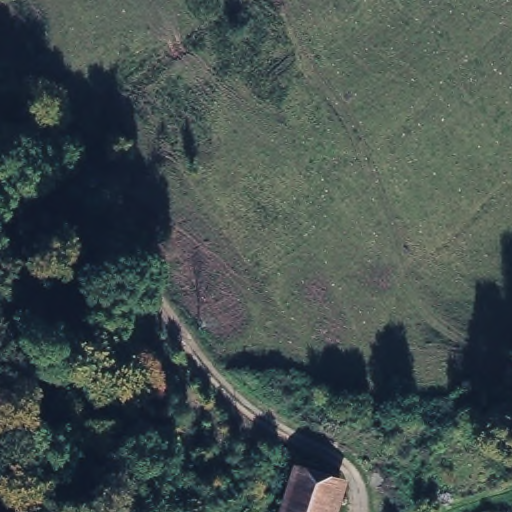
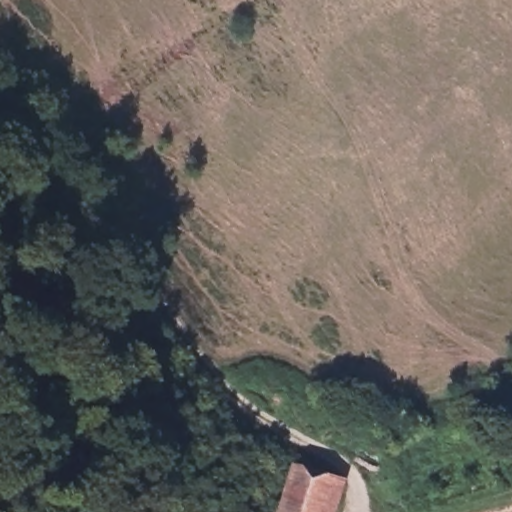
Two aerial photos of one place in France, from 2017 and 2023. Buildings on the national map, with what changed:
unchanged [(329,512),(281,512),(299,466),(341,482),(329,512)]

